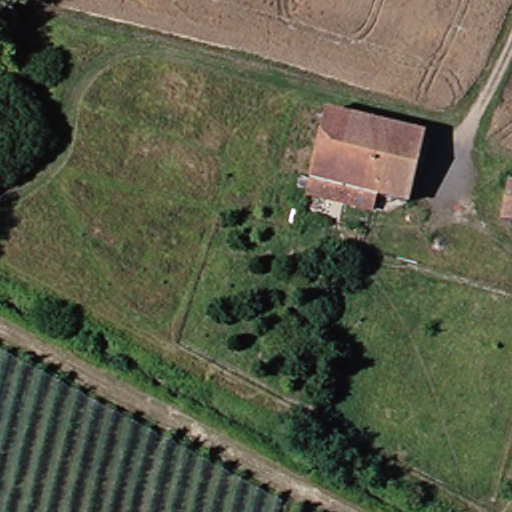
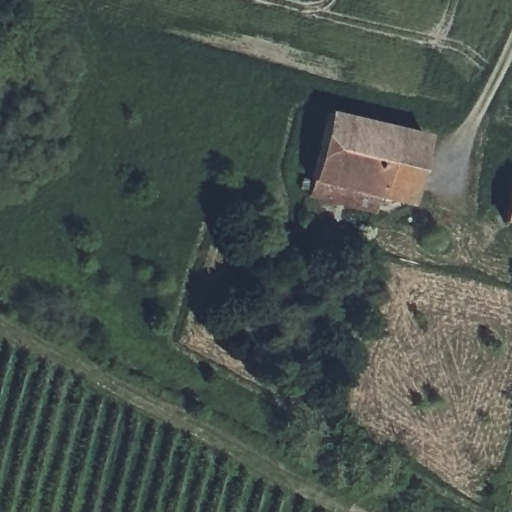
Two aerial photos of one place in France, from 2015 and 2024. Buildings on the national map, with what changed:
unchanged [(310,184),(323,133),(309,130),(313,109),(394,128),(377,202),(310,184)]
unchanged [(394,128),(422,136),(406,209),(377,202),(394,128)]
unchanged [(371,216),(306,200),(310,184),(377,202),(371,216)]
unchanged [(512,197),(512,217),(508,217),(512,197)]

